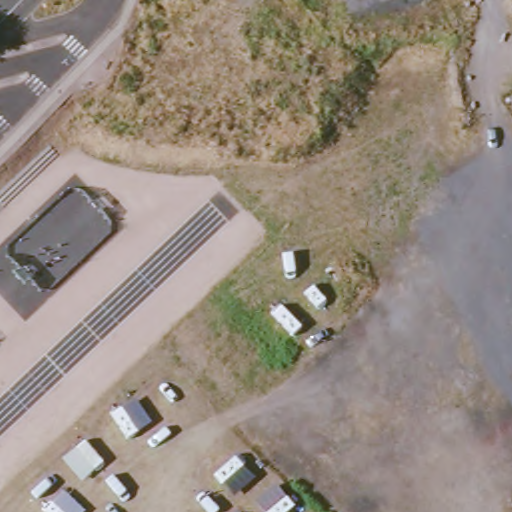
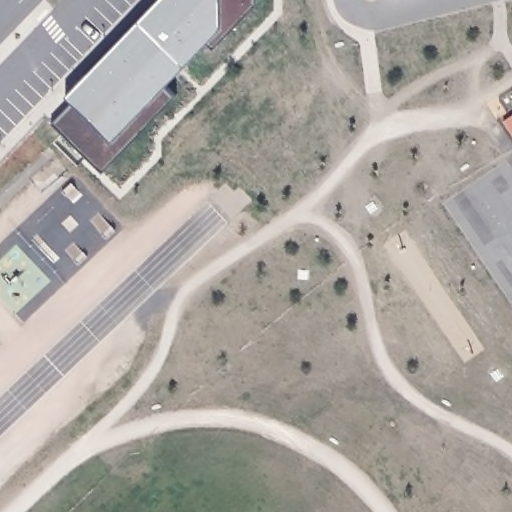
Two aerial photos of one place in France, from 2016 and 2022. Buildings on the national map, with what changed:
new [(102,165),(53,118),(73,97),(67,91),(153,0),(249,0),(211,40),(208,37),(167,80),(175,87),(179,91),(106,168),(102,165)]
new [(88,69),(85,66),(147,0),(153,0),(88,69)]
new [(215,44),(211,40),(249,0),(256,0),(215,44)]

